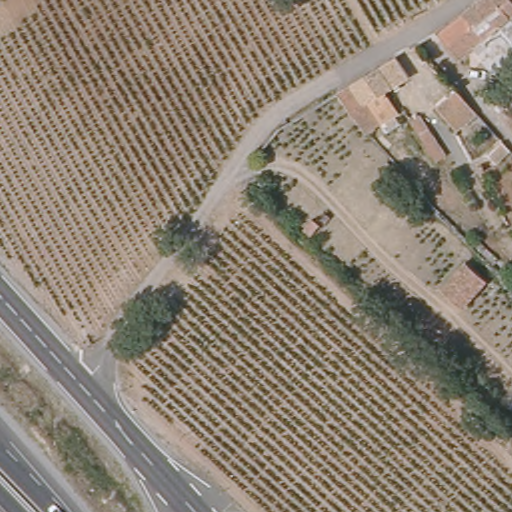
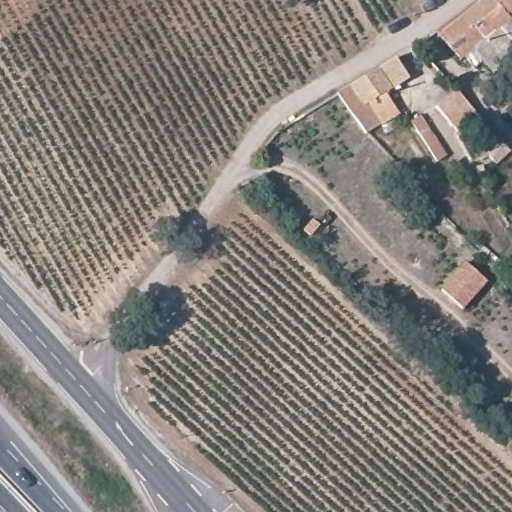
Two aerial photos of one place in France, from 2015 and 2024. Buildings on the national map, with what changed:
unchanged [(512,0),(512,43),(511,44),(504,47),(488,47),(469,59),(442,34),(483,0),(512,0)]
unchanged [(381,124),(370,135),(368,135),(334,94),(396,57),(410,76),(386,92),(401,111),(381,124)]
unchanged [(482,115),(463,129),(443,105),(459,90),(482,115)]
unchanged [(449,289),(474,262),(495,282),(470,309),(449,289)]

